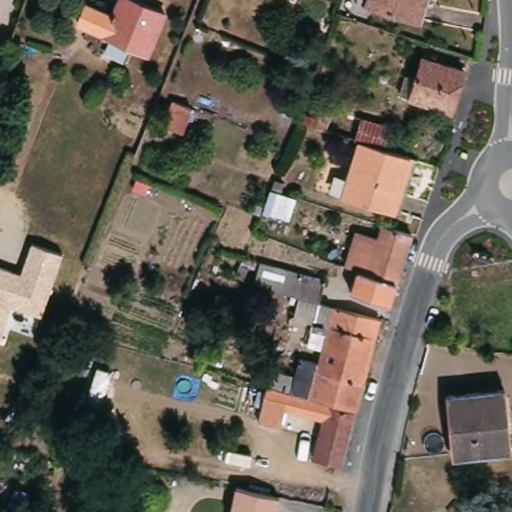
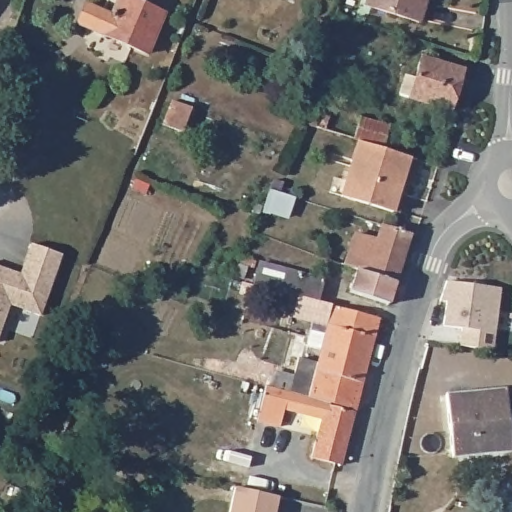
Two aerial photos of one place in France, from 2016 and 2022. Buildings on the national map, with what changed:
unchanged [(165,12),(149,52),(79,25),(85,5),(111,15),(118,0),(134,0),(165,12)]
unchanged [(416,26),(361,7),(364,0),(425,0),(416,26)]
unchanged [(440,66),(442,60),(453,64),(452,70),(464,75),(451,114),(410,100),(423,60),(440,66)]
unchanged [(190,109),(180,132),(162,125),(171,101),(190,109)]
unchanged [(391,125),(385,146),(303,120),(305,112),(328,120),(332,107),(391,125)]
unchanged [(393,215),(342,200),(360,141),(410,156),(393,215)]
unchanged [(270,189),(296,196),(288,215),(263,206),(270,189)]
unchanged [(352,292),(359,270),(360,270),(369,241),(377,242),(383,225),(411,235),(395,283),(388,305),(352,292)]
unchanged [(30,244),(64,255),(41,317),(10,306),(0,333),(0,267),(20,273),(30,244)]
unchanged [(263,262),(327,280),(322,301),(285,292),(255,285),(263,262)]
unchanged [(256,267),(250,280),(243,277),(249,265),(256,267)]
new [(462,328),(444,326),(447,301),(440,300),(447,281),(502,288),(495,350),(459,347),(462,328)]
unchanged [(245,306),(243,310),(238,307),(240,304),(245,306)]
unchanged [(334,402),(318,398),(325,373),(320,371),(338,306),(348,308),(385,318),(370,377),(360,410),(334,402)]
unchanged [(301,394),(315,397),(310,415),(310,416),(287,410),(282,428),(260,422),(270,386),(301,394)]
unchanged [(450,396),(500,392),(504,431),(510,431),(511,448),(455,453),(450,396)]
unchanged [(334,402),(333,405),(360,413),(344,465),(313,456),(315,452),(323,420),(310,415),(315,397),(318,398),(334,402)]
unchanged [(269,512),(223,512),(227,488),(271,496),(269,512)]

